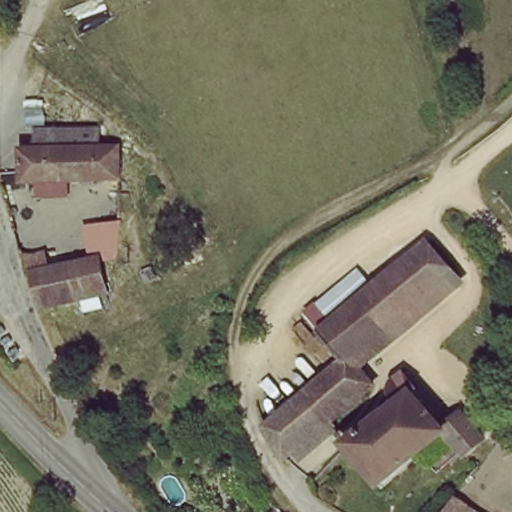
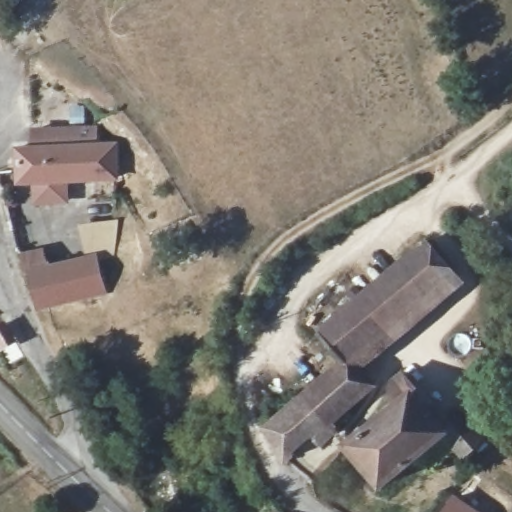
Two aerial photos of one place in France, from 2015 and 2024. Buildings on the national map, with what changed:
unchanged [(35,158),(35,139),(118,140),(118,158),(35,158)]
unchanged [(118,158),(119,185),(25,185),(23,158),(35,158),(118,158)]
unchanged [(115,219),(115,256),(88,257),(87,218),(115,219)]
unchanged [(325,323),(330,318),(424,236),(457,273),(356,359),(325,323)]
unchanged [(107,292),(40,313),(30,282),(26,267),(47,261),(51,275),(99,261),(107,292)]
unchanged [(337,375),(356,359),(381,387),(335,425),(333,422),(311,397),(337,375)]
unchanged [(349,456),(404,410),(399,399),(414,386),(424,402),(416,409),(447,445),(386,497),(349,456)]
unchanged [(333,422),(292,459),(281,438),(276,426),(311,397),(333,422)]
unchanged [(485,447),(464,465),(447,445),(469,427),(485,447)]
unchanged [(469,512),(442,512),(450,499),(469,512)]
unchanged [(281,512),(276,512),(280,509),(281,512)]

